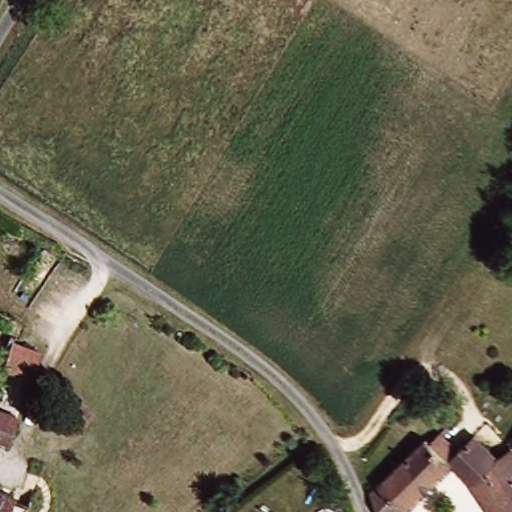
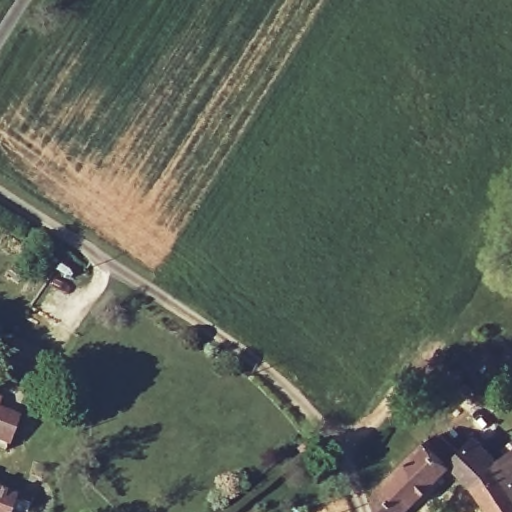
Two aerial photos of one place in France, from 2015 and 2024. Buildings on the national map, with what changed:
unchanged [(19,338),(41,347),(36,360),(48,364),(42,378),(8,365),(19,338)]
unchanged [(18,416),(8,442),(0,439),(0,409),(18,416)]
unchanged [(388,482),(432,432),(458,456),(454,460),(410,509),(407,512),(390,512),(381,490),(388,482)]
unchanged [(458,456),(480,435),(499,457),(496,460),(512,485),(512,506),(501,511),(454,460),(458,456)]
unchanged [(499,457),(512,446),(512,485),(496,460),(499,457)]
unchanged [(0,512),(0,489),(18,496),(18,499),(26,502),(34,505),(31,512),(0,512)]
unchanged [(498,512),(501,511),(501,512),(498,512)]

